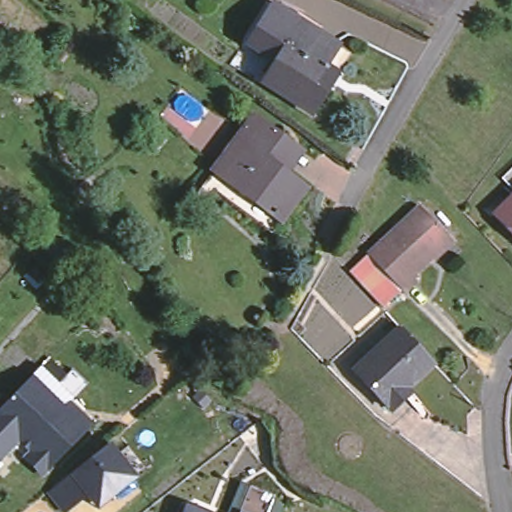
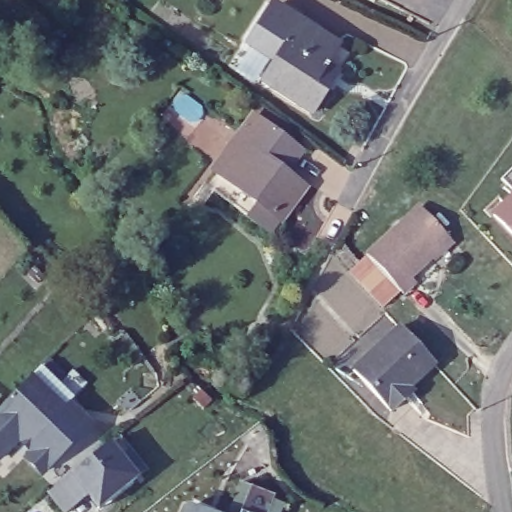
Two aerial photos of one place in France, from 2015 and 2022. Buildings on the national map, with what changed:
unchanged [(245,40),(270,2),(295,19),(271,56),(245,40)]
unchanged [(295,19),(296,18),(344,49),(305,109),(257,78),(271,56),(295,19)]
unchanged [(205,170),(232,134),(233,134),(245,119),(283,147),(267,169),(295,189),(271,222),(214,179),(215,178),(205,170)]
unchanged [(490,217),(494,213),(511,194),(497,180),(512,165),(512,239),(495,223),(490,217)]
unchanged [(380,262),(361,279),(351,268),(370,250),(421,203),(451,235),(411,272),(417,278),(405,289),(401,285),(383,303),(371,289),(389,272),(380,262)]
unchanged [(410,389),(407,388),(388,405),(355,372),(402,328),(435,364),(410,389)]
unchanged [(20,462),(27,454),(13,441),(0,454),(0,405),(35,369),(69,401),(63,407),(81,424),(83,427),(35,476),(27,468),(20,462)]
unchanged [(88,496),(68,512),(64,512),(49,493),(85,464),(109,444),(118,456),(137,479),(108,503),(100,509),(88,496)]
unchanged [(237,483),(247,487),(270,496),(268,501),(279,504),(276,512),(226,512),(237,483)]
unchanged [(184,507),(197,512),(182,512),(184,507)]

